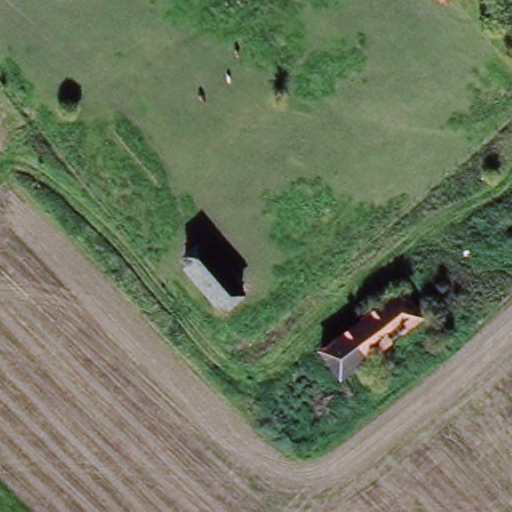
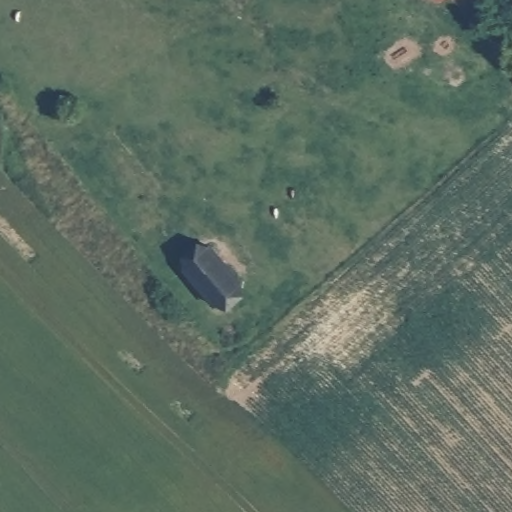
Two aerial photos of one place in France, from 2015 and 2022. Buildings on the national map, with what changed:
unchanged [(461,0),(478,0),(467,8),(461,0)]
unchanged [(246,293),(224,310),(193,272),(216,254),(246,293)]
demolished [(321,352),(391,296),(413,324),(342,379),(321,352)]

